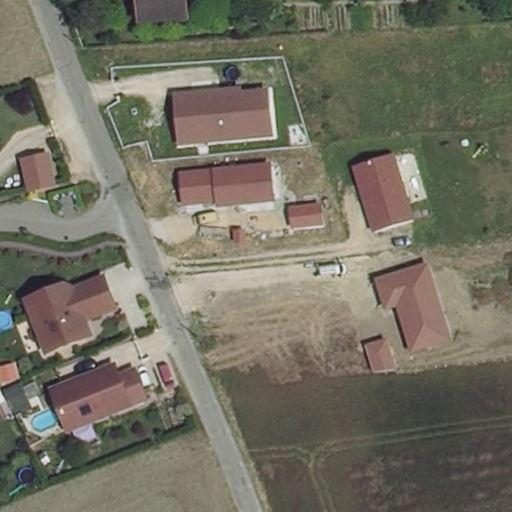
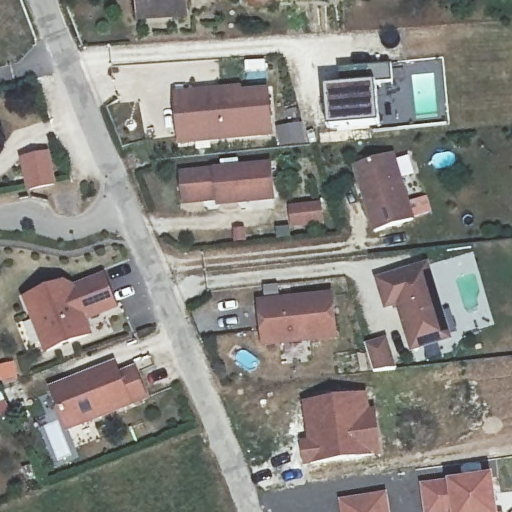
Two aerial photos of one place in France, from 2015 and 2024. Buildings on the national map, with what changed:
unchanged [(189,12),(144,14),(143,0),(188,0),(189,12)]
new [(324,87),(339,86),(338,70),(390,65),(392,81),(374,83),(378,124),(327,128),(324,87)]
unchanged [(244,86),(246,90),(273,89),(276,135),(182,145),(177,92),(244,86)]
unchanged [(396,153),(417,217),(373,232),(353,168),(396,153)]
new [(44,163),(50,192),(26,197),(20,168),(44,163)]
unchanged [(270,163),(273,202),(214,207),(213,201),(180,204),(178,171),(270,163)]
unchanged [(315,209),(317,227),(288,230),(287,212),(315,209)]
unchanged [(427,262),(449,340),(410,352),(396,307),(385,310),(374,279),(427,262)]
unchanged [(44,350),(23,293),(73,272),(78,283),(96,277),(123,301),(91,313),(96,330),(44,350)]
new [(262,347),(258,299),(334,292),(339,341),(262,347)]
new [(382,342),(391,372),(370,374),(362,348),(382,342)]
unchanged [(134,402),(66,426),(52,381),(116,359),(134,402)]
new [(305,437),(300,400),(369,393),(372,409),(375,409),(383,456),(301,467),(298,438),(305,437)]
new [(499,512),(423,512),(419,484),(493,475),(499,512)]
new [(388,491),(391,512),(340,512),(338,499),(388,491)]

